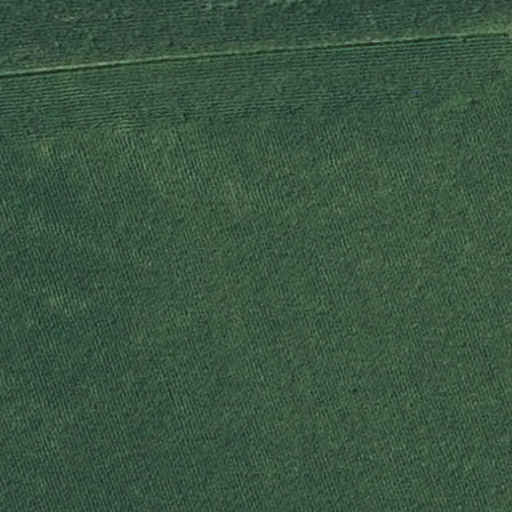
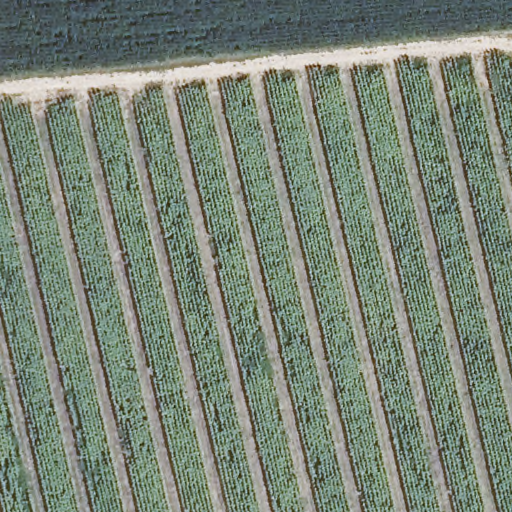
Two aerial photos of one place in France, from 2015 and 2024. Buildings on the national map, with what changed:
[]

